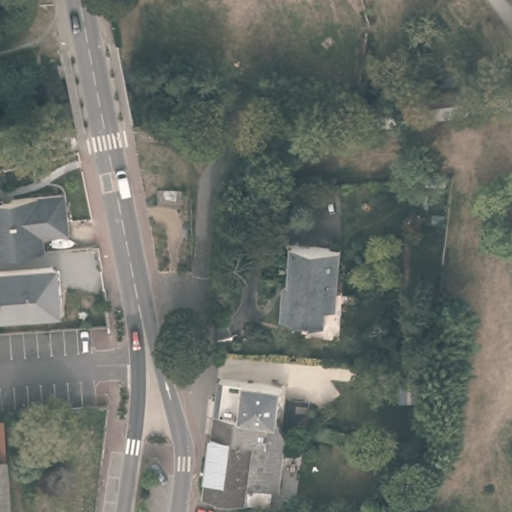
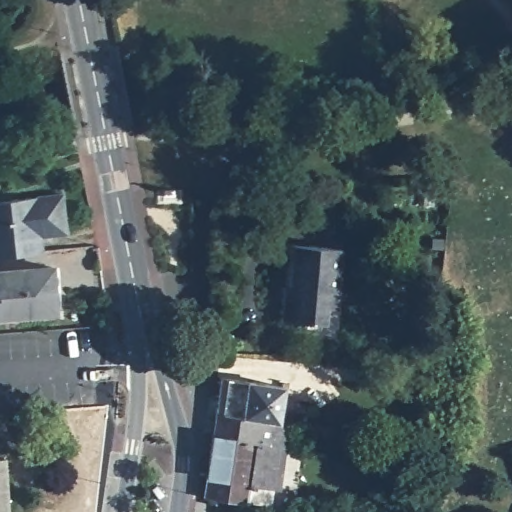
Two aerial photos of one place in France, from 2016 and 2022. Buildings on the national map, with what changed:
unchanged [(40,240),(40,255),(0,257),(0,197),(4,200),(65,199),(66,239),(40,240)]
unchanged [(339,255),(335,298),(325,298),(321,330),(280,325),(280,299),(285,298),(290,251),(339,255)]
unchanged [(56,271),(56,318),(0,319),(0,272),(56,271)]
unchanged [(214,385),(274,390),(271,427),(273,429),(211,420),(214,385)]
unchanged [(4,420),(5,512),(0,512),(0,421),(4,420)]
unchanged [(211,420),(273,429),(283,438),(282,450),(209,443),(211,420)]
unchanged [(282,450),(278,495),(272,495),(270,511),(205,505),(209,443),(282,450)]

